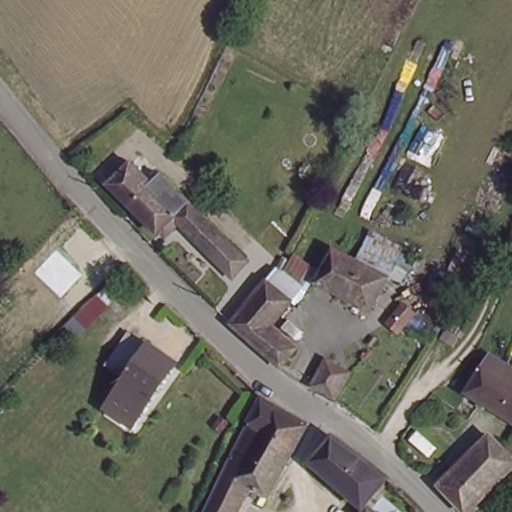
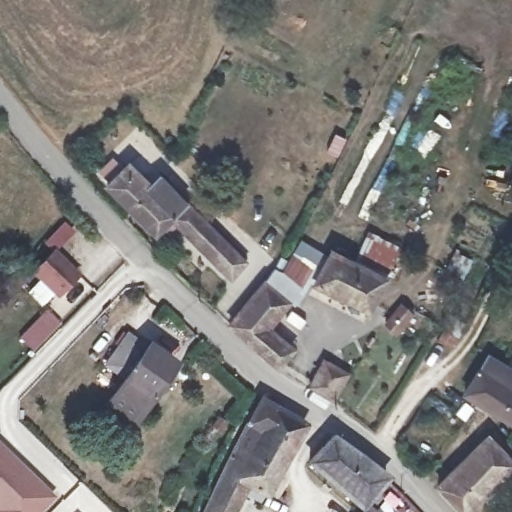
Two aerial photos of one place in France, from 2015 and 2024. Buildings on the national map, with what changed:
unchanged [(223,277),(176,226),(159,239),(102,179),(131,153),(152,176),(161,171),(243,261),(223,277)]
unchanged [(315,287),(329,245),(356,260),(369,233),(402,249),(387,278),(368,312),(315,287)]
new [(51,251),(75,274),(56,295),(31,272),(51,251)]
unchanged [(224,328),(260,282),(280,302),(265,325),(292,353),(279,370),(224,328)]
unchanged [(410,299),(423,313),(397,338),(385,324),(410,299)]
unchanged [(126,378),(110,363),(135,335),(171,366),(125,421),(105,403),(126,378)]
unchanged [(483,354),(512,372),(512,424),(461,391),(483,354)]
unchanged [(306,383),(323,359),(348,379),(331,403),(306,383)]
unchanged [(233,512),(205,512),(257,412),(295,430),(258,504),(243,495),(233,512)]
unchanged [(485,440),(510,466),(464,511),(438,486),(485,440)]
unchanged [(314,470),(335,441),(380,482),(357,510),(314,470)]
new [(55,499),(42,512),(0,512),(0,446),(55,499)]
unchanged [(199,512),(190,512),(191,508),(199,512)]
unchanged [(356,512),(357,510),(359,512),(356,512)]

